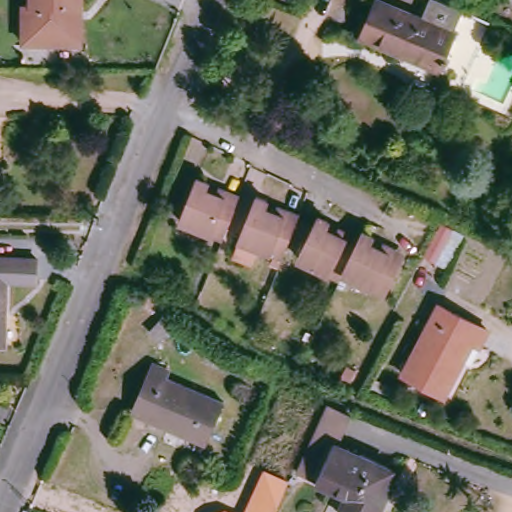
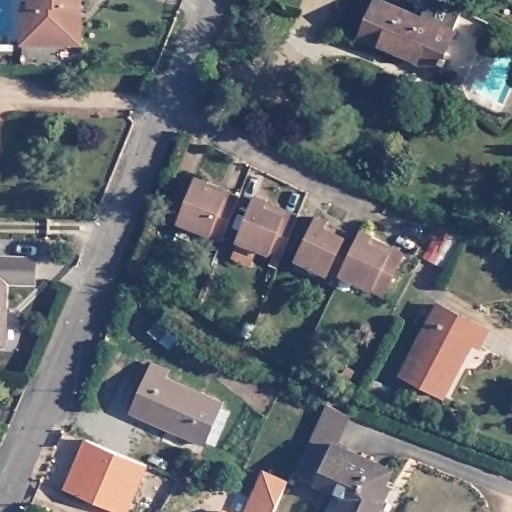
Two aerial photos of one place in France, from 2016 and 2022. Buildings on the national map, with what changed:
unchanged [(83,5),(75,6),(73,40),(23,39),(24,0),(30,1),(30,0),(83,0),(83,5)]
unchanged [(417,16),(425,0),(449,0),(460,5),(448,30),(448,31),(430,70),(355,35),(371,0),(384,0),(417,16)]
unchanged [(209,179),(207,186),(240,198),(225,235),(182,219),(198,175),(209,179)]
unchanged [(264,200),(260,206),(293,220),(280,255),(237,238),(253,196),(264,200)]
unchanged [(343,274),(300,254),(321,209),(330,213),(327,222),(360,236),(346,269),(343,274)]
unchanged [(360,236),(365,222),(378,227),(375,237),(402,250),(386,287),(346,269),(360,236)]
unchanged [(510,227),(512,222),(512,228),(510,227)]
unchanged [(0,284),(0,258),(30,258),(30,284),(0,284)]
unchanged [(488,325),(480,342),(472,338),(445,392),(401,368),(437,298),(488,325)]
unchanged [(164,323),(147,342),(137,332),(154,314),(164,323)]
unchanged [(162,371),(158,379),(215,405),(200,444),(125,410),(146,364),(162,371)]
unchanged [(337,448),(382,468),(373,491),(377,493),(368,512),(334,512),(331,511),(338,494),(297,475),(330,403),(352,414),(337,448)]
new [(110,512),(63,492),(85,442),(145,468),(125,512),(110,512)]
unchanged [(287,481),(273,512),(244,512),(263,469),(287,481)]
unchanged [(234,512),(216,512),(225,509),(234,512)]

